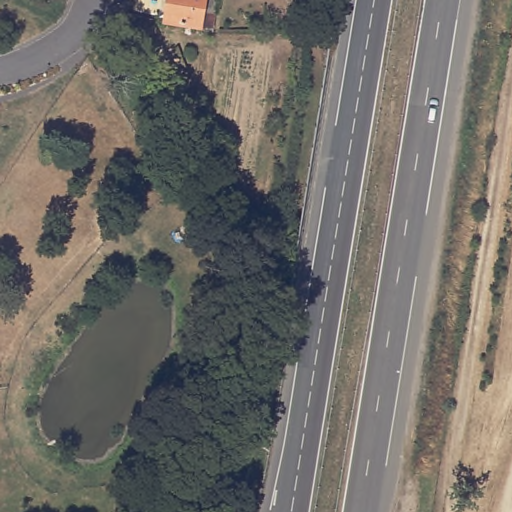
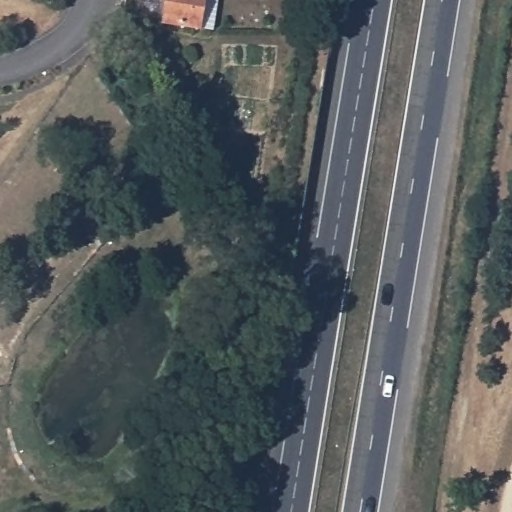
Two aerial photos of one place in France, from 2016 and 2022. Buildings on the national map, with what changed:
unchanged [(212,29),(199,27),(162,21),(166,0),(216,0),(212,29)]

